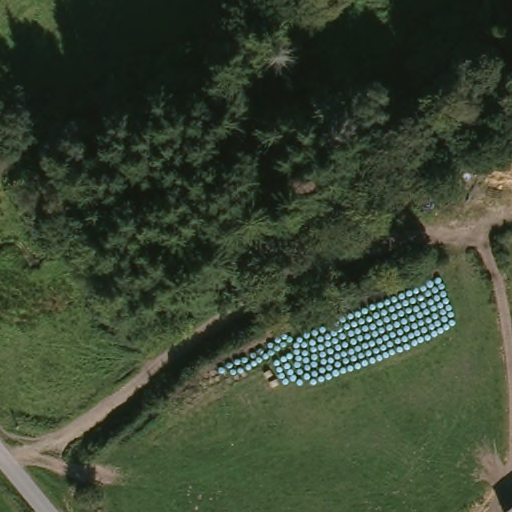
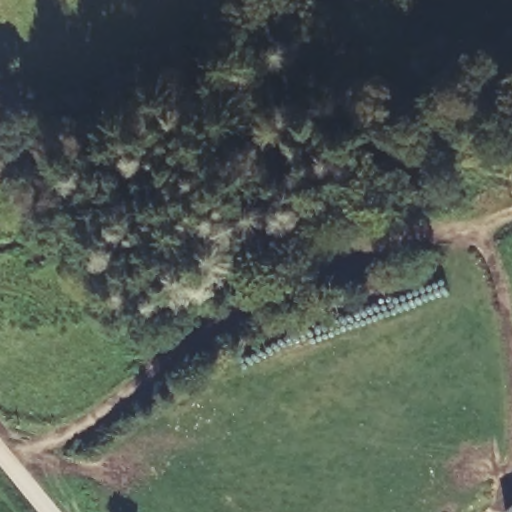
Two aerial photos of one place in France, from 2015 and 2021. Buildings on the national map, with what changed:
unchanged [(507,512),(512,507),(512,512),(507,512)]

